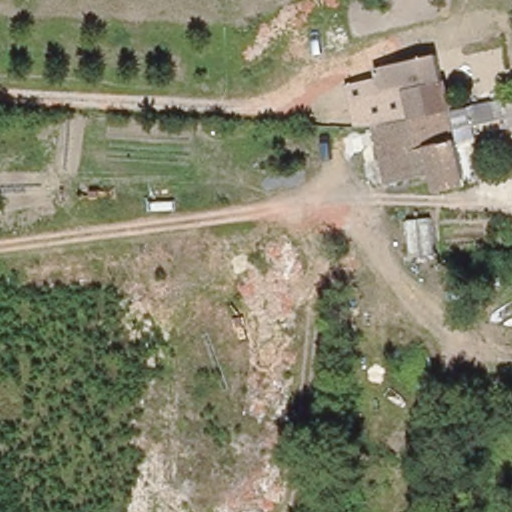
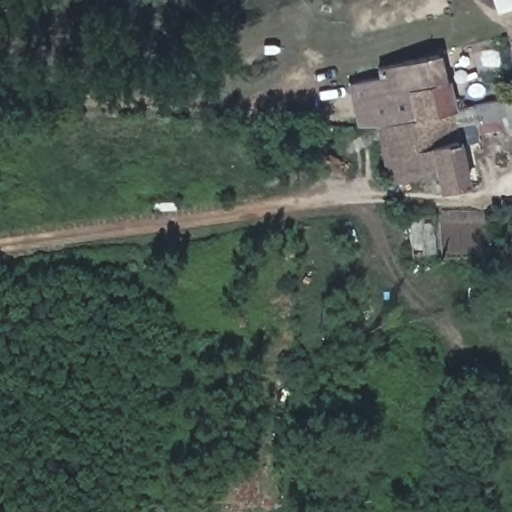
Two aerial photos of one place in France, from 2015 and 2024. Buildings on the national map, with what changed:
new [(495,13),(492,0),(512,0),(512,8),(495,13)]
unchanged [(378,122),(376,94),(390,93),(388,61),(446,55),(455,111),(427,115),(378,122)]
unchanged [(512,102),(512,126),(510,127),(508,119),(457,129),(455,111),(512,102)]
unchanged [(457,129),(463,186),(433,190),(432,170),(427,115),(455,111),(457,129)]
unchanged [(427,115),(432,170),(382,177),(378,122),(427,115)]

